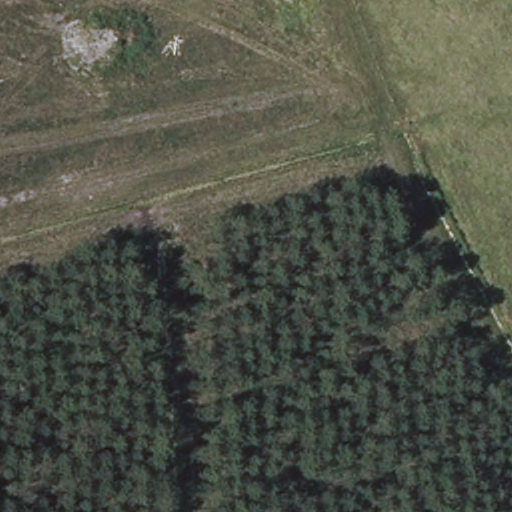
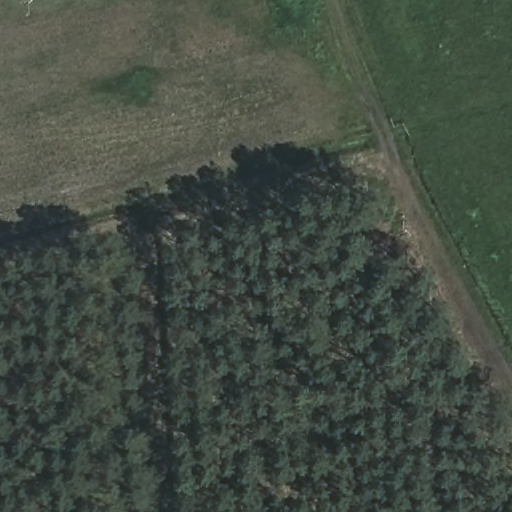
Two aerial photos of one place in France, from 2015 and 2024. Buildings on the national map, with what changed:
[]

